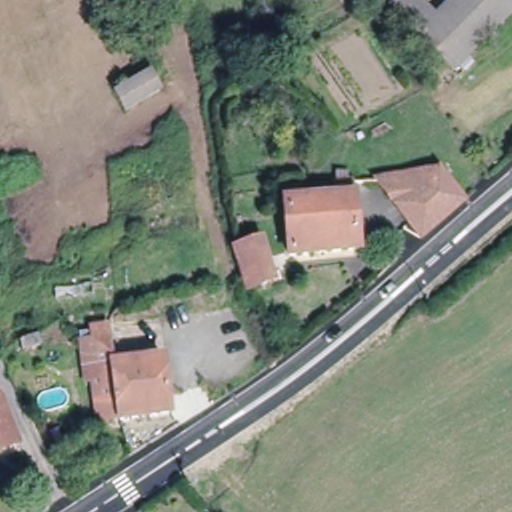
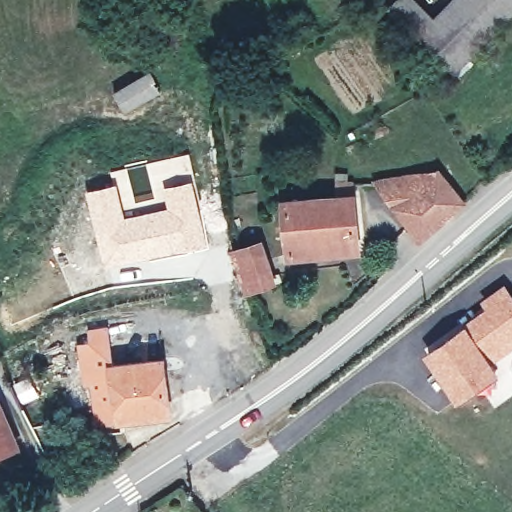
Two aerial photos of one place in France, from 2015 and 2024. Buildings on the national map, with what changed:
unchanged [(425,0),(437,13),(420,30),(394,0),(425,0)]
unchanged [(452,0),(512,0),(512,10),(450,66),(420,30),(437,13),(452,0)]
unchanged [(159,83),(124,102),(112,83),(145,62),(159,83)]
unchanged [(417,231),(372,176),(437,164),(461,195),(417,231)]
new [(117,181),(126,215),(167,205),(163,186),(194,179),(209,247),(104,269),(87,188),(117,181)]
unchanged [(356,185),(360,250),(290,255),(287,204),(337,201),(337,186),(356,185)]
unchanged [(235,242),(261,235),(276,278),(251,286),(235,242)]
new [(480,301),(505,283),(512,293),(512,350),(495,362),(502,374),(457,400),(423,354),(485,307),(480,301)]
unchanged [(119,367),(115,331),(166,326),(171,364),(119,367)]
unchanged [(119,367),(171,364),(175,414),(102,423),(99,385),(74,387),(69,350),(74,349),(87,347),(87,334),(105,332),(115,331),(119,367)]
unchanged [(16,441),(0,448),(0,398),(16,441)]

